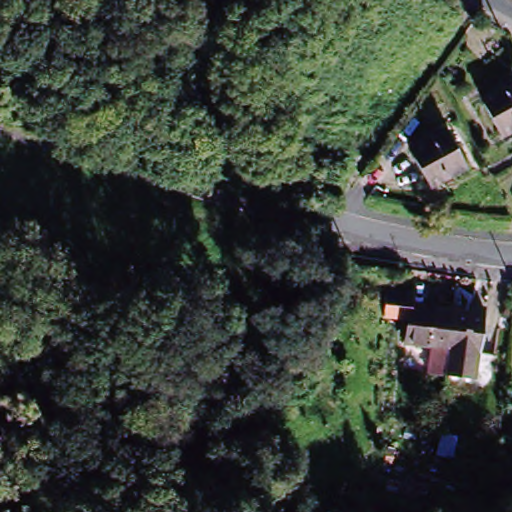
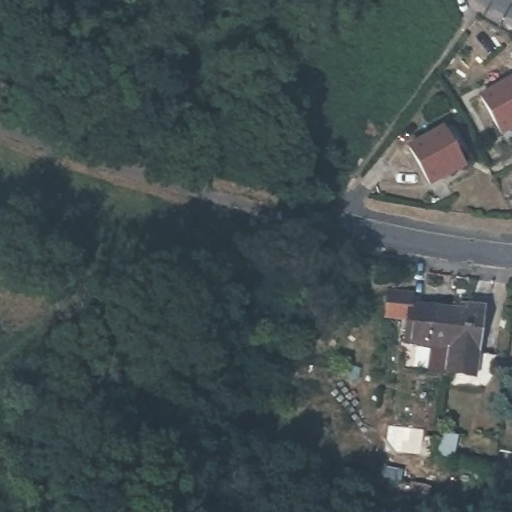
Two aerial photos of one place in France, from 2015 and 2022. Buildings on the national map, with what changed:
unchanged [(481,100),(512,81),(512,130),(503,136),(481,100)]
unchanged [(431,184),(409,147),(444,126),(466,164),(431,184)]
unchanged [(489,305),(480,374),(448,370),(451,349),(455,309),(456,301),(489,305)]
unchanged [(448,370),(446,384),(426,381),(431,346),(409,343),(415,304),(455,309),(451,349),(448,370)]

